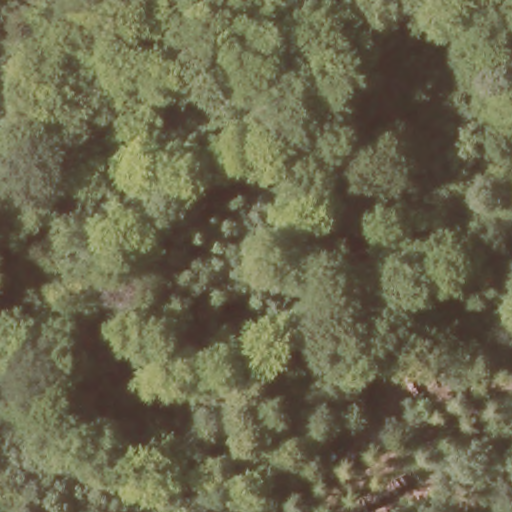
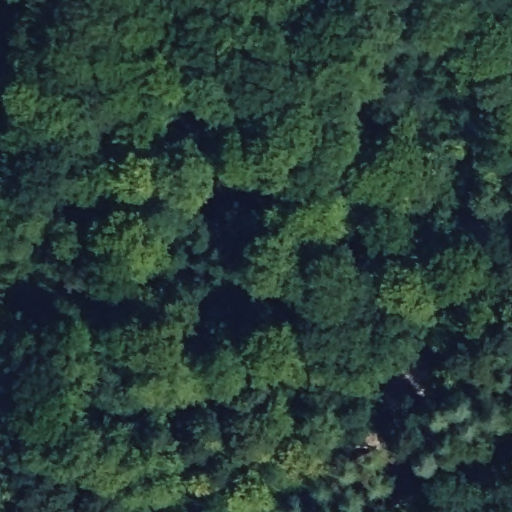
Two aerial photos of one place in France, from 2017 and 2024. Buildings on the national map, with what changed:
unchanged [(157,224),(137,250),(123,239),(142,214),(157,224)]

